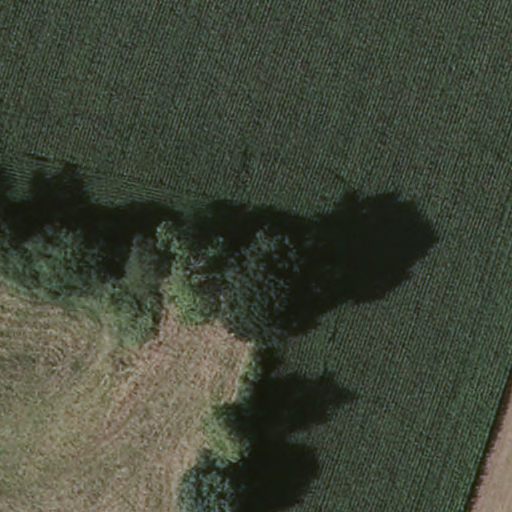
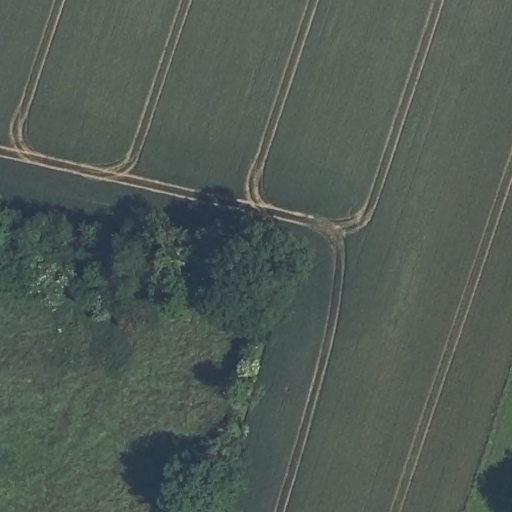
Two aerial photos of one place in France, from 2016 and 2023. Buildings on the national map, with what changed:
[]

